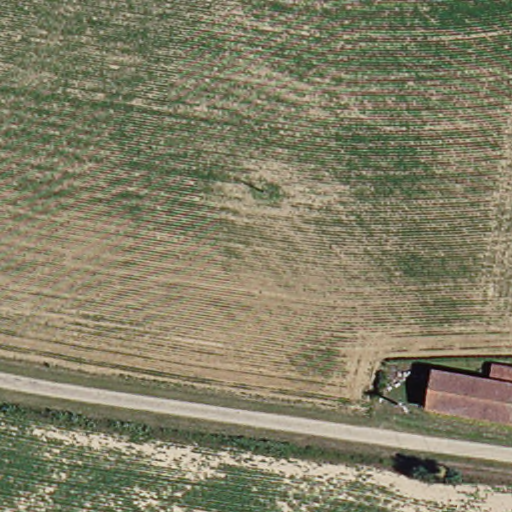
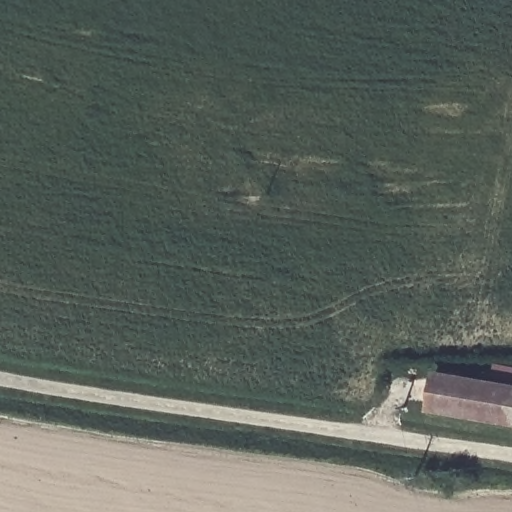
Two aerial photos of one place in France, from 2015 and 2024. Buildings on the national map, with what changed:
unchanged [(437,375),(491,383),(495,364),(512,366),(512,426),(432,412),(437,375)]

